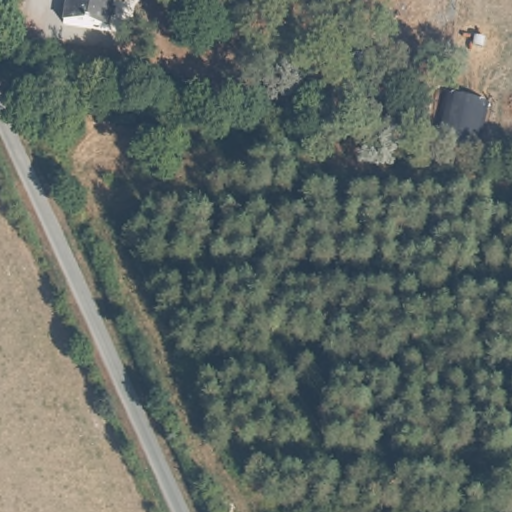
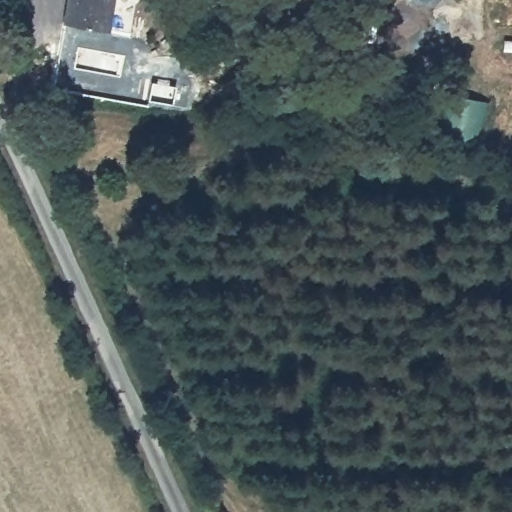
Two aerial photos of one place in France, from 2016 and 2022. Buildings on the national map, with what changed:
unchanged [(60,24),(64,0),(111,0),(105,33),(60,24)]
unchanged [(478,145),(439,137),(449,93),(488,103),(478,145)]

